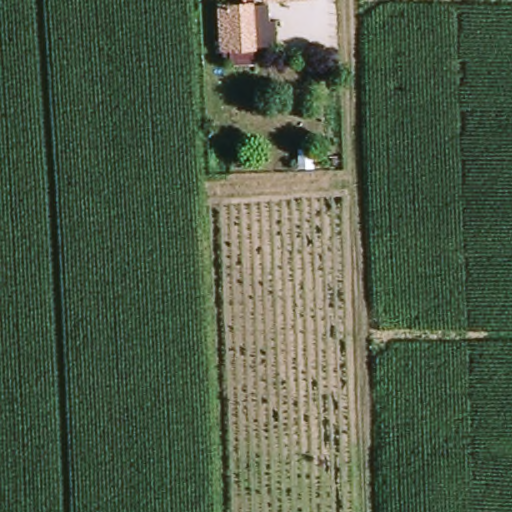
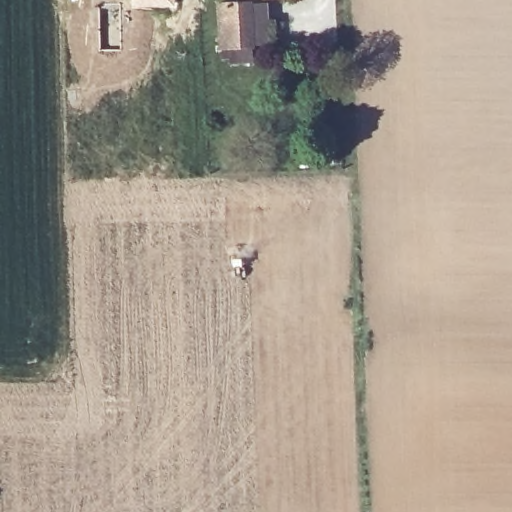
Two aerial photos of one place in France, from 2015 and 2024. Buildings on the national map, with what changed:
new [(130,8),(130,0),(176,0),(176,6),(130,8)]
unchanged [(225,46),(222,5),(255,2),(257,44),(225,46)]

